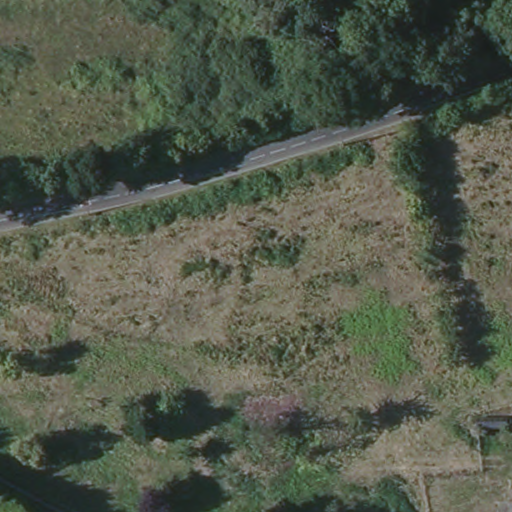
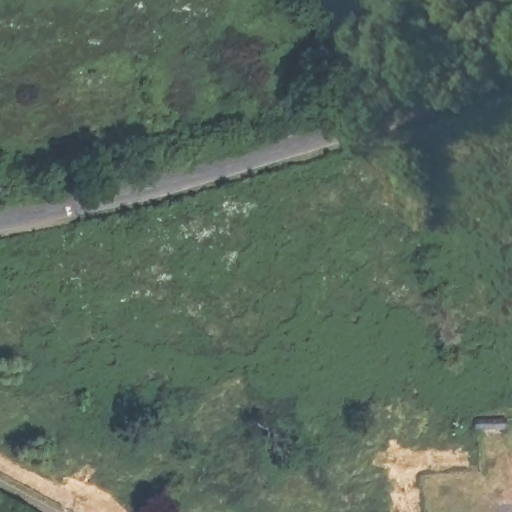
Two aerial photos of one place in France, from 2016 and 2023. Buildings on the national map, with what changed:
unchanged [(295,397),(295,418),(243,418),(243,397),(295,397)]
unchanged [(504,412),(506,427),(477,431),(476,416),(504,412)]

